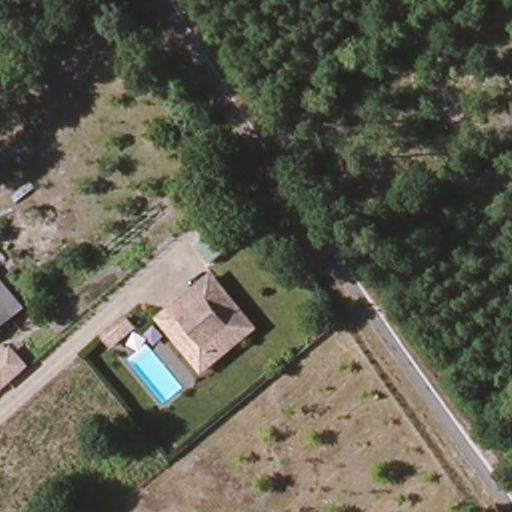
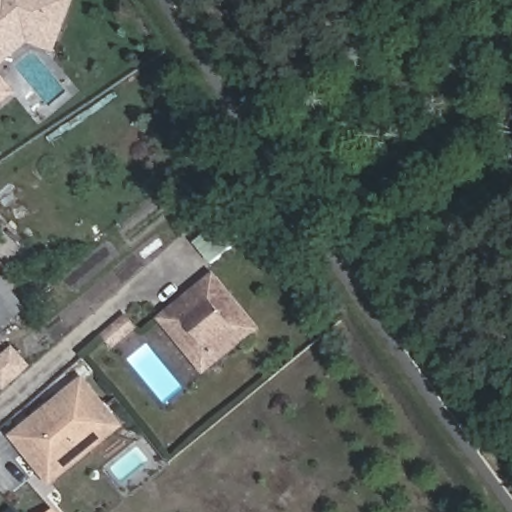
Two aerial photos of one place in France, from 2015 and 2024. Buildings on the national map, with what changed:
new [(29,45),(0,69),(0,0),(77,0),(56,54),(29,45)]
unchanged [(196,245),(223,223),(240,244),(214,266),(196,245)]
unchanged [(0,299),(0,274),(26,306),(14,315),(0,299)]
unchanged [(174,338),(162,323),(187,303),(195,297),(214,283),(254,334),(223,358),(202,375),(174,338)]
unchanged [(14,315),(0,327),(0,299),(14,315)]
unchanged [(134,318),(142,327),(121,345),(112,335),(134,318)]
unchanged [(4,391),(0,387),(0,357),(13,346),(31,366),(4,391)]
new [(50,488),(10,436),(85,376),(125,427),(50,488)]

